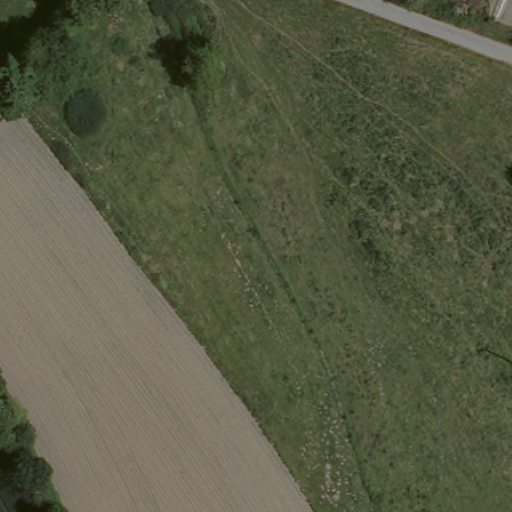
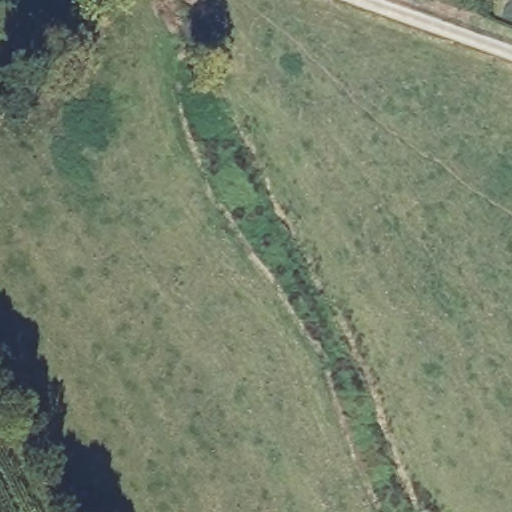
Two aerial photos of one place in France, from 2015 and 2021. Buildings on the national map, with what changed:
[]

